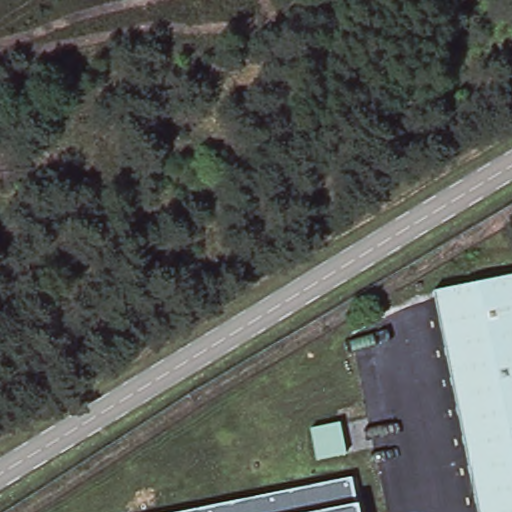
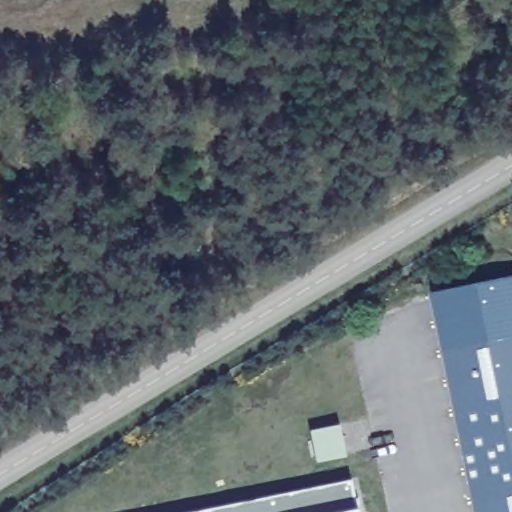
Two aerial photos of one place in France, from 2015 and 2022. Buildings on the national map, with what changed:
unchanged [(474,512),(429,295),(512,277),(512,512),(474,512)]
unchanged [(340,426),(347,457),(315,462),(310,432),(340,426)]
unchanged [(357,512),(185,512),(350,478),(357,512)]

